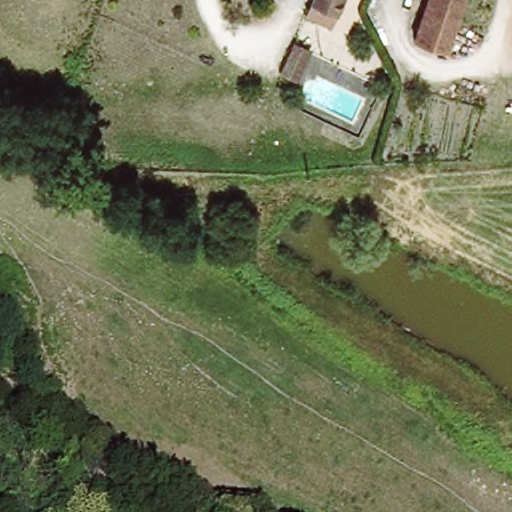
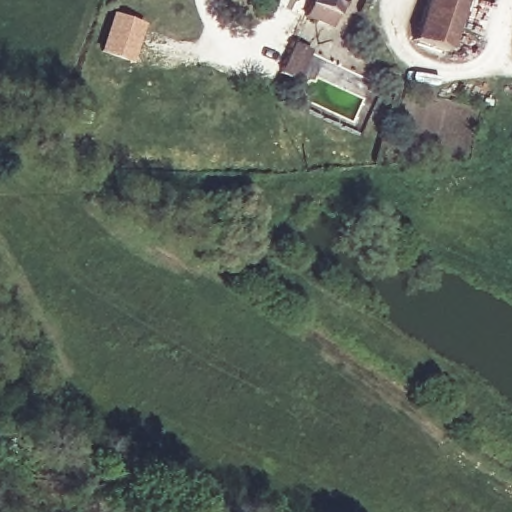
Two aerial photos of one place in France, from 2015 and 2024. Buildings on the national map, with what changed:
unchanged [(349,20),(303,5),(305,0),(356,0),(349,20)]
unchanged [(429,0),(466,0),(450,48),(417,36),(429,0)]
new [(130,64),(97,52),(112,11),(145,23),(130,64)]

